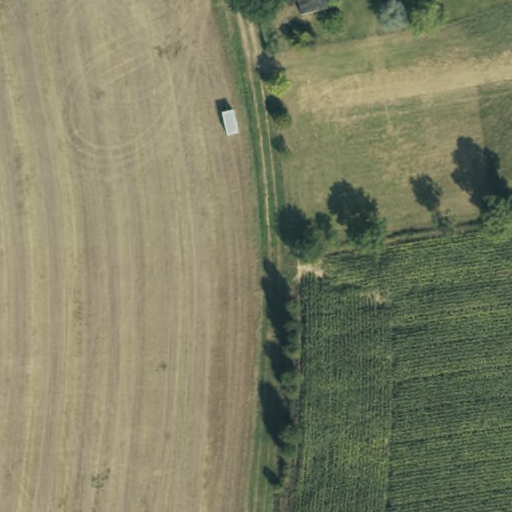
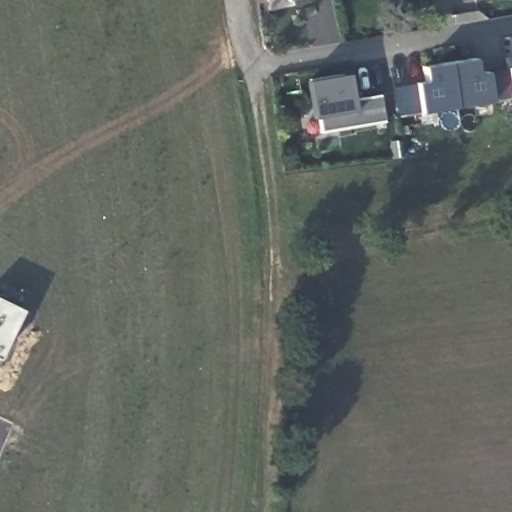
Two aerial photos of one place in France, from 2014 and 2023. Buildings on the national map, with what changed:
demolished [(298,0),(325,0),(326,11),(300,15),(298,0)]
new [(505,57),(512,56),(512,97),(507,68),(505,57)]
new [(491,101),(420,113),(399,117),(394,89),(418,84),(425,82),(423,69),(474,59),(478,74),(507,68),(512,97),(491,101)]
new [(319,132),(316,117),(312,117),(306,81),(348,75),(353,101),(380,95),(384,122),(319,132)]

